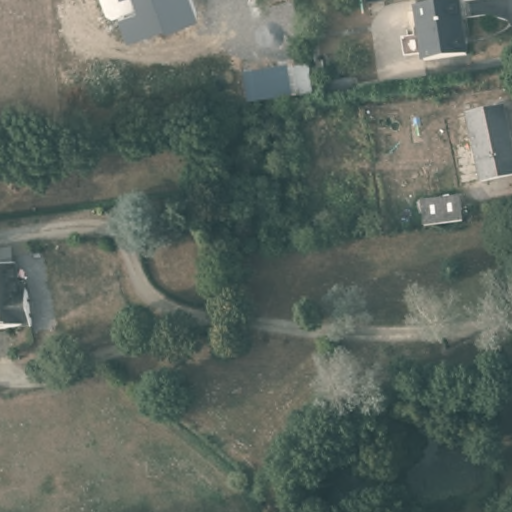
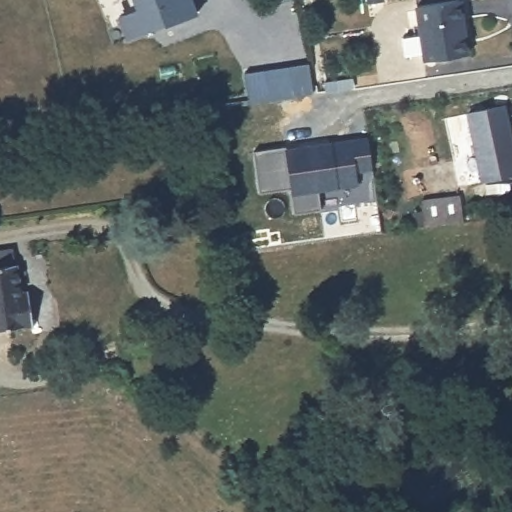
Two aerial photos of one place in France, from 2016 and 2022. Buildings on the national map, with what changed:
unchanged [(126,39),(118,15),(135,9),(131,0),(192,0),(196,13),(165,24),(126,39)]
unchanged [(428,59),(420,9),(462,2),(470,54),(428,59)]
unchanged [(311,98),(250,105),(245,72),(303,64),(311,98)]
unchanged [(484,181),(469,114),(506,105),(512,135),(512,174),(484,181)]
new [(373,169),(355,171),(357,184),(316,190),(319,208),(293,212),(289,188),(259,192),(252,150),(285,145),(285,147),(368,136),(373,169)]
unchanged [(425,227),(422,201),(461,196),(464,221),(425,227)]
unchanged [(15,267),(17,266),(21,295),(32,294),(36,326),(0,331),(0,254),(14,253),(15,267)]

